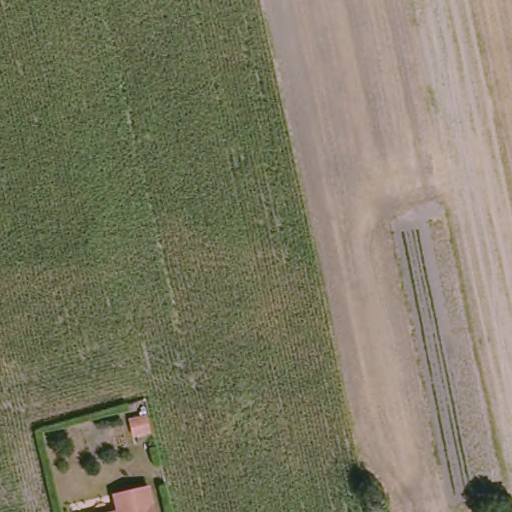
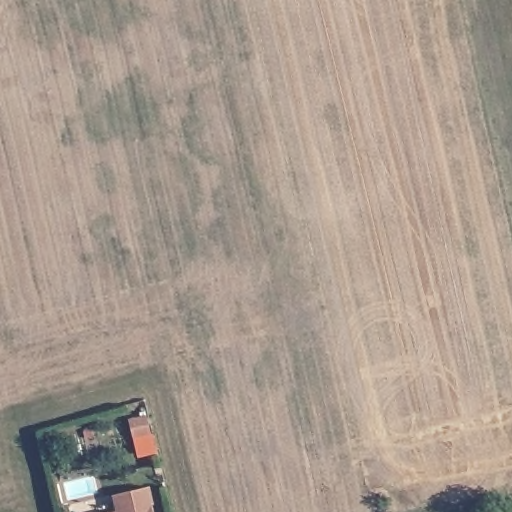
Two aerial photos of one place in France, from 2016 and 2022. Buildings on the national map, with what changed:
unchanged [(116,500),(153,492),(157,512),(119,512),(116,500)]

